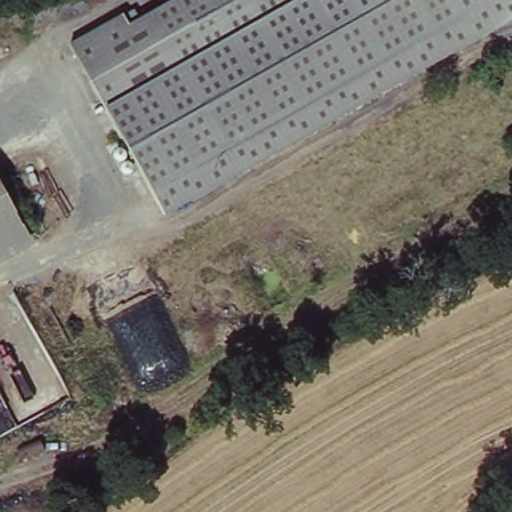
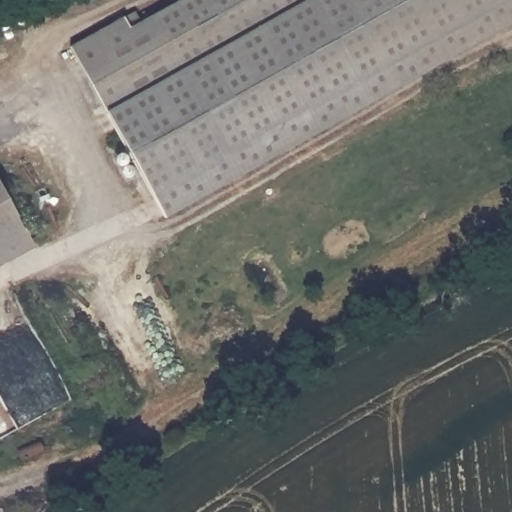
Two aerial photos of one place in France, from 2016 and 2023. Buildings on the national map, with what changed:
unchanged [(128,0),(129,0),(135,10),(153,0),(512,0),(512,19),(165,215),(64,36),(117,5),(128,0)]
unchanged [(0,262),(0,194),(29,246),(0,262)]

